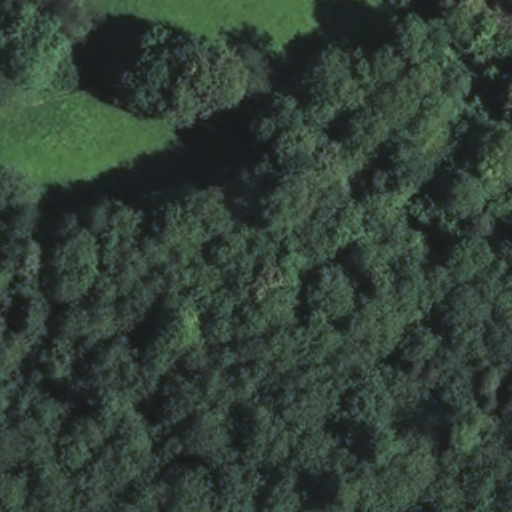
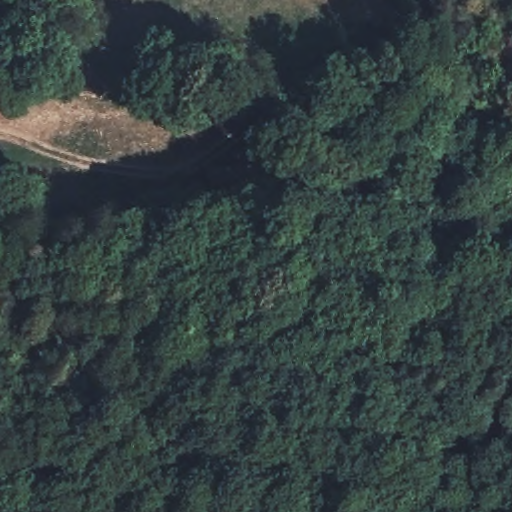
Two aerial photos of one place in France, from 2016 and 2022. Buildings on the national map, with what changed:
unchanged [(242,164),(245,203),(212,205),(211,187),(210,166),(242,164)]

